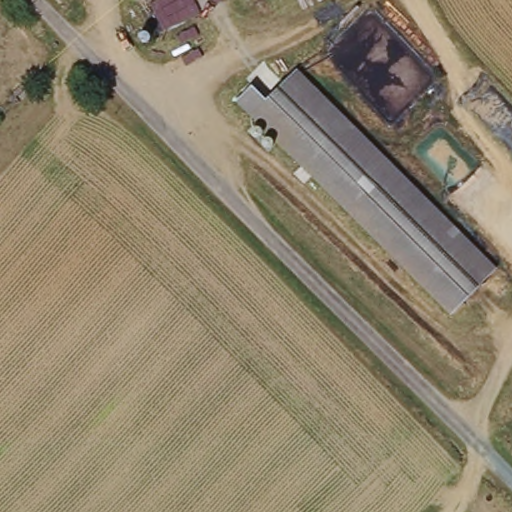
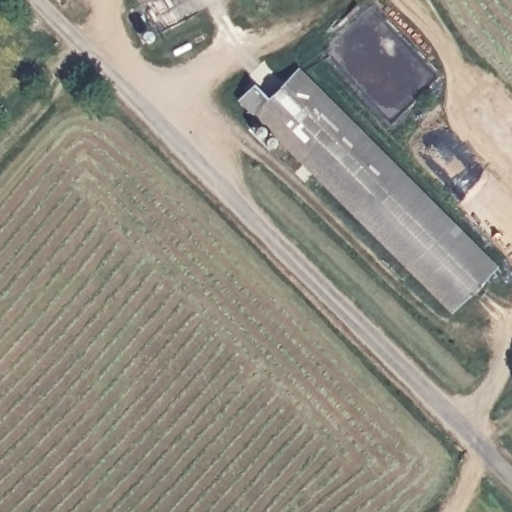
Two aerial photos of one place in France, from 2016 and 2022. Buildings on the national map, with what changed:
unchanged [(260,102),(275,114),(306,82),(495,262),(451,309),(246,116),(260,102)]

